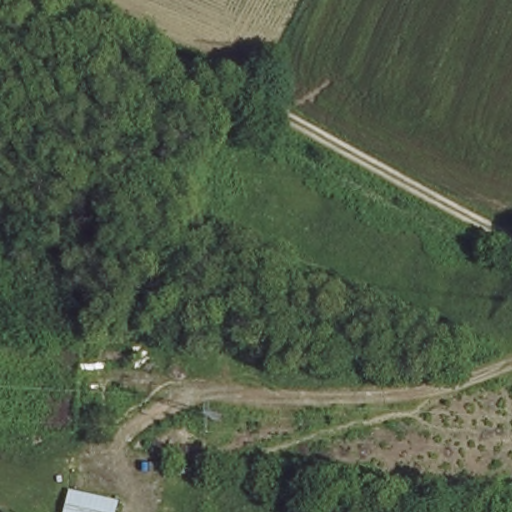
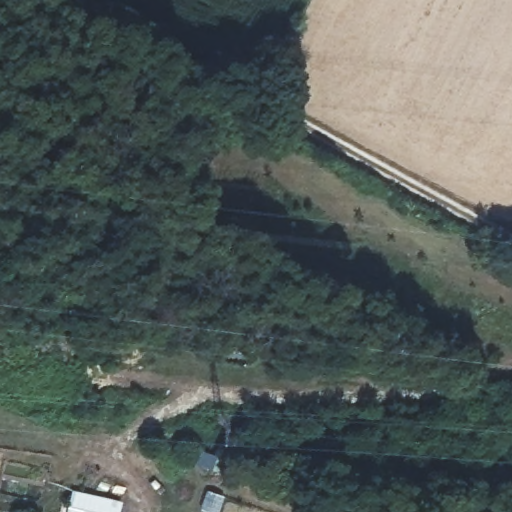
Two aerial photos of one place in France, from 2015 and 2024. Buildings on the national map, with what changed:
unchanged [(118,512),(64,512),(72,482),(122,495),(118,512)]

